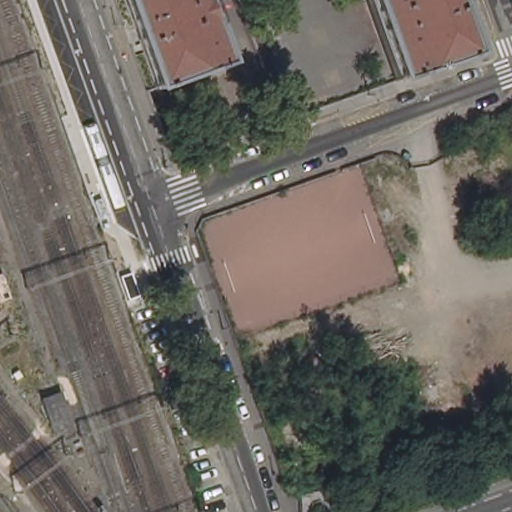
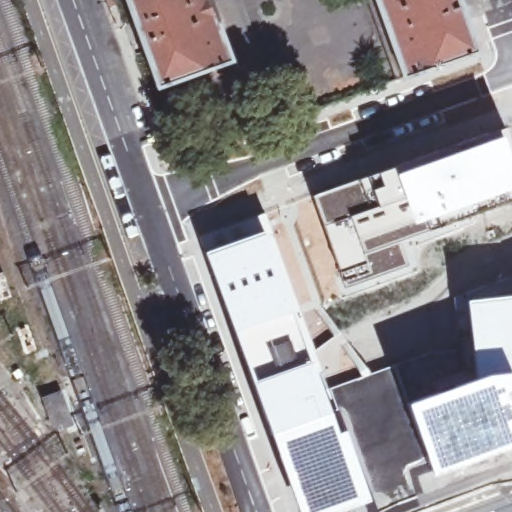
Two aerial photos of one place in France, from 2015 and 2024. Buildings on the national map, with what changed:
unchanged [(233,61),(158,87),(139,36),(137,29),(127,0),(211,0),(233,61)]
unchanged [(402,74),(399,68),(385,28),(375,0),(383,0),(394,32),(409,73),(404,75),(402,76),(402,74)]
unchanged [(484,46),(409,73),(394,32),(383,0),(468,0),(484,46)]
new [(499,135),(512,170),(512,199),(438,224),(364,254),(366,262),(339,271),(311,195),(396,174),(499,135)]
new [(311,269),(323,265),(333,295),(309,302),(281,216),(293,212),(311,269)]
new [(264,227),(294,296),(294,306),(312,356),(248,380),(231,340),(201,250),(264,227)]
unchanged [(8,271),(17,294),(1,299),(0,296),(0,275),(8,271)]
new [(512,273),(512,378),(509,369),(473,374),(464,297),(469,296),(488,293),(486,282),(512,273)]
new [(325,388),(331,410),(338,428),(344,425),(371,499),(338,512),(296,512),(248,380),(312,356),(325,388)]
new [(389,365),(401,400),(408,424),(403,413),(386,418),(368,413),(364,413),(340,417),(336,408),(331,410),(325,388),(389,365)]
new [(509,369),(512,378),(512,445),(429,474),(408,424),(401,400),(473,374),(509,369)]
unchanged [(59,390),(73,425),(56,431),(43,395),(59,390)]

